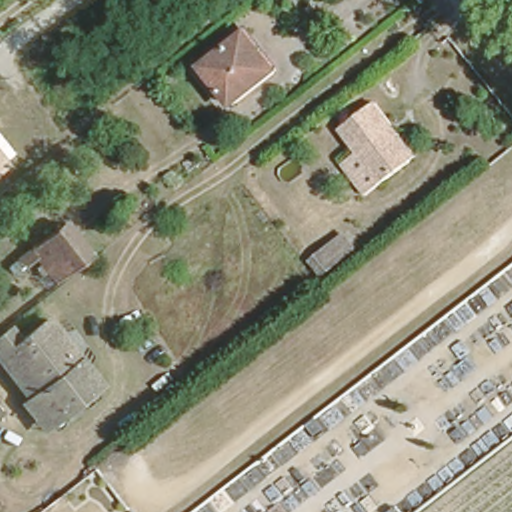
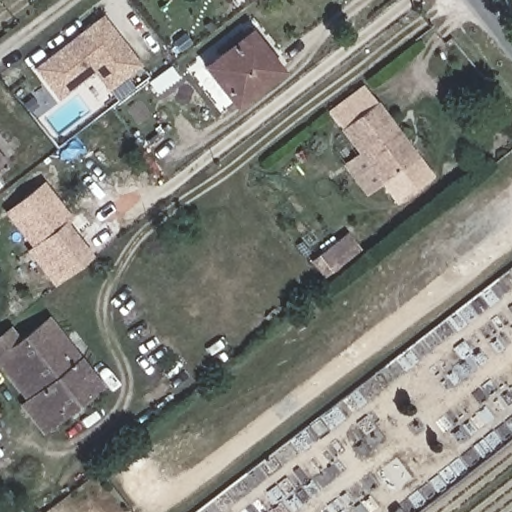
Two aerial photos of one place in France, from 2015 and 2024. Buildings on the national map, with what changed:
new [(107,92),(94,73),(56,100),(32,68),(103,14),(140,64),(107,92)]
unchanged [(278,67),(234,100),(227,89),(206,62),(249,29),(278,67)]
unchanged [(395,136),(414,160),(380,186),(339,133),(373,106),(389,127),(395,136)]
unchanged [(0,162),(0,149),(6,157),(0,162)]
new [(63,216),(28,243),(4,212),(44,180),(72,217),(67,221),(63,216)]
unchanged [(92,252),(56,279),(28,243),(63,216),(92,252)]
unchanged [(326,254),(343,241),(353,233),(367,251),(357,259),(340,273),(326,254)]
unchanged [(38,395),(1,350),(4,348),(0,344),(0,334),(8,328),(16,339),(48,315),(59,330),(65,338),(100,383),(63,412),(43,428),(24,405),(38,395)]

